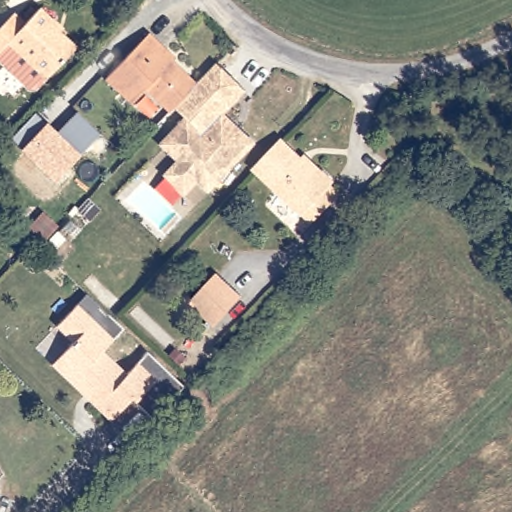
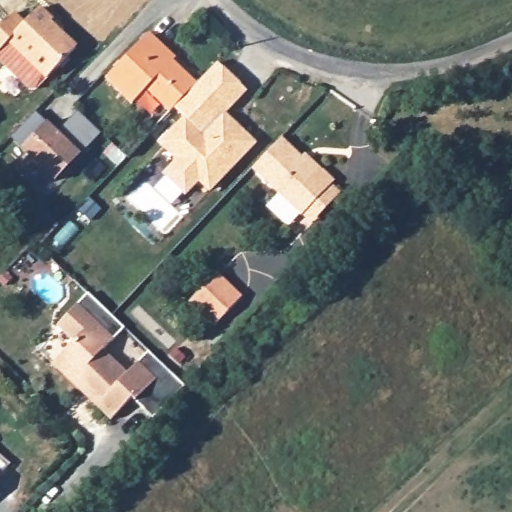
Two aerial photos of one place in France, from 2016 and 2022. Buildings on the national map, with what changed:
unchanged [(44,82),(37,75),(7,42),(24,24),(40,8),(80,43),(44,82)]
unchanged [(37,75),(25,88),(0,63),(0,25),(12,13),(24,24),(7,42),(37,75)]
unchanged [(174,108),(148,86),(130,105),(102,80),(129,53),(150,31),(160,42),(157,44),(197,84),(174,108)]
unchanged [(216,64),(244,92),(221,112),(255,144),(207,190),(197,181),(184,195),(161,174),(175,160),(157,143),(182,116),(174,108),(197,84),(216,64)]
unchanged [(54,183),(21,149),(8,136),(35,109),(48,122),(56,131),(76,112),(100,134),(82,153),(54,183)]
unchanged [(317,219),(308,211),(306,213),(257,165),(285,135),(323,173),(326,169),(336,179),(332,183),(342,192),(317,219)]
unchanged [(37,200),(51,215),(35,232),(21,217),(37,200)]
unchanged [(212,275),(237,299),(210,328),(185,304),(212,275)]
unchanged [(65,352),(74,343),(56,325),(87,294),(122,327),(100,351),(125,374),(147,351),(185,386),(160,413),(145,398),(130,398),(110,419),(95,405),(50,366),(65,352)]

